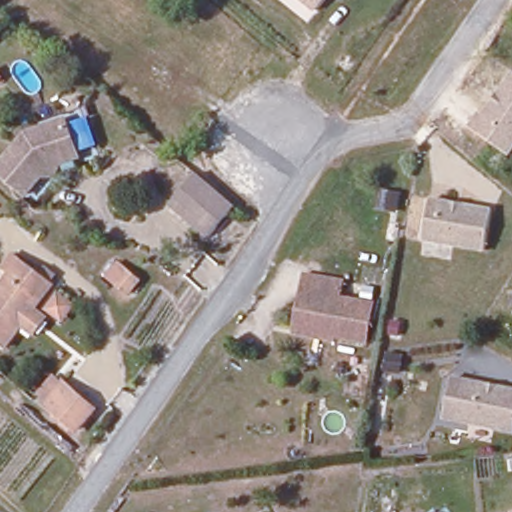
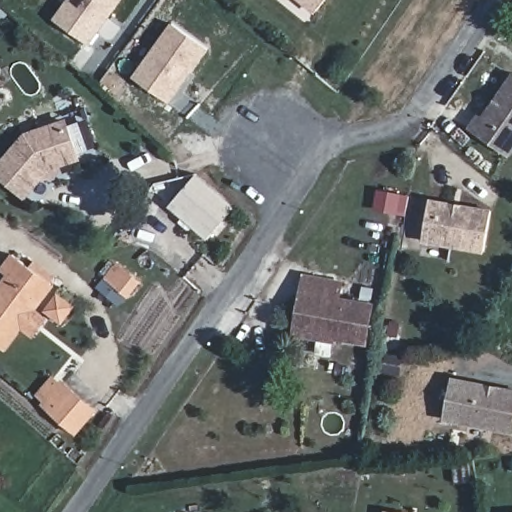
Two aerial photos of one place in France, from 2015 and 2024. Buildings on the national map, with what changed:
new [(122,0),(89,46),(52,21),(66,0),(122,0)]
unchanged [(306,0),(324,0),(317,9),(306,0)]
new [(170,101),(135,76),(174,23),(209,48),(170,101)]
unchanged [(506,156),(469,127),(479,114),(483,115),(492,103),(496,105),(500,99),(497,96),(512,78),(512,147),(506,156)]
unchanged [(45,171),(25,195),(0,175),(0,165),(24,135),(73,121),(84,159),(45,171)]
unchanged [(208,238),(172,205),(198,174),(235,207),(208,238)]
unchanged [(484,251),(422,240),(429,201),(489,211),(484,251)]
unchanged [(34,313),(45,322),(30,341),(20,334),(3,355),(0,353),(0,280),(3,277),(0,275),(0,268),(8,257),(54,291),(34,313)]
unchanged [(126,298),(117,290),(126,278),(135,287),(126,298)]
unchanged [(299,295),(303,278),(339,286),(337,302),(374,308),(363,352),(301,339),(289,337),(299,295)]
unchanged [(61,322),(45,309),(57,293),(73,304),(61,322)]
unchanged [(441,416),(450,378),(512,389),(512,430),(441,416)]
unchanged [(74,437),(43,413),(61,386),(91,409),(74,437)]

